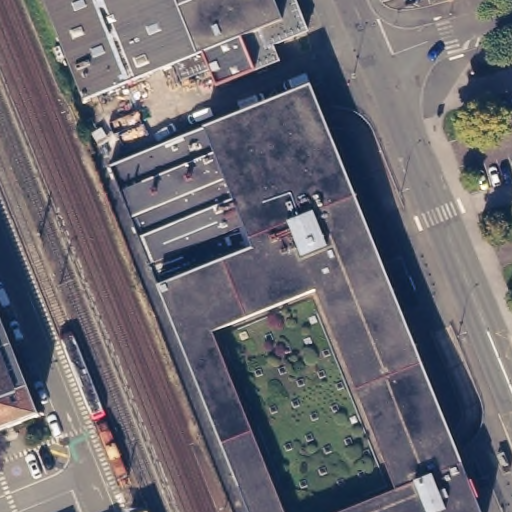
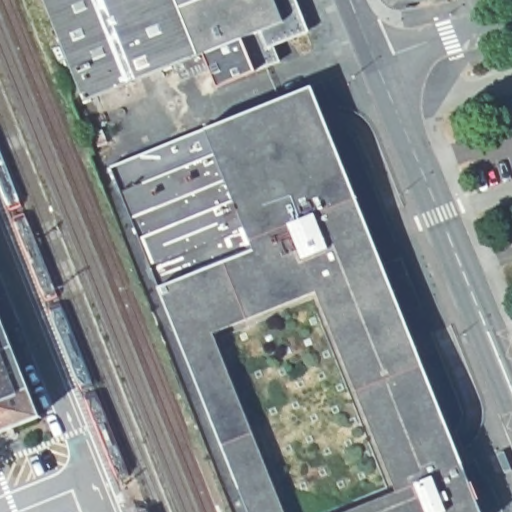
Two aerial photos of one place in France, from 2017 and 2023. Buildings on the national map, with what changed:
unchanged [(143,100),(109,113),(102,95),(89,101),(48,0),(300,0),(312,30),(271,47),(278,63),(221,87),(214,70),(187,81),(180,64),(147,78),(154,96),(143,100)]
unchanged [(168,135),(174,132),(175,136),(312,82),(316,94),(318,99),(320,105),(328,124),(363,209),(402,309),(484,512),(305,512),(158,143),(170,139),(168,135)]
unchanged [(305,512),(251,512),(110,162),(158,143),(305,512)]
unchanged [(400,276),(396,265),(403,262),(407,274),(400,276)]
unchanged [(45,422),(0,439),(0,308),(45,422)]
unchanged [(138,511),(140,512),(135,512),(138,511)]

